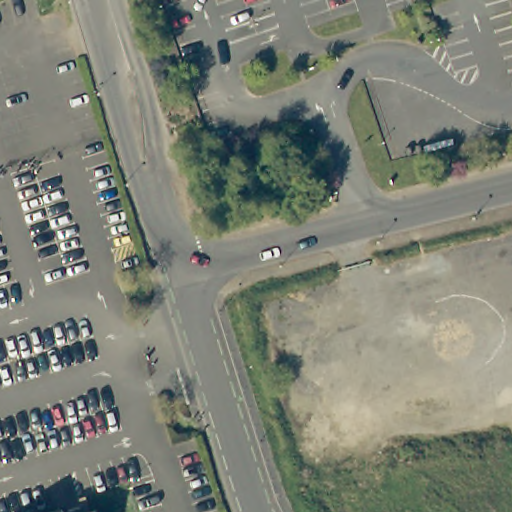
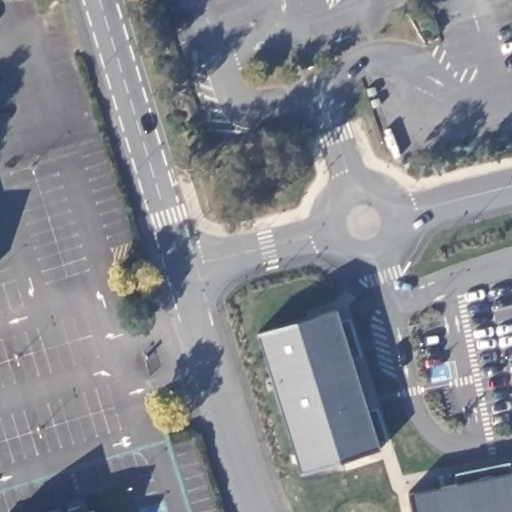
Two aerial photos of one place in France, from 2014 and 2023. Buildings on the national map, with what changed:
new [(335,308),(340,321),(350,318),(361,355),(351,358),(368,410),(377,407),(387,438),(377,442),(379,448),(301,472),(257,333),(335,308)]
new [(413,512),(409,492),(512,471),(512,512),(413,512)]

